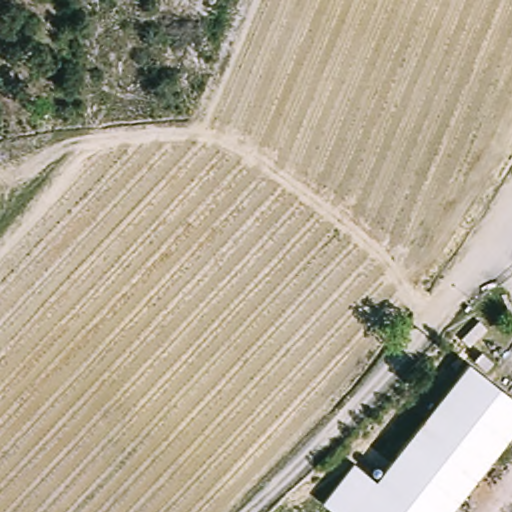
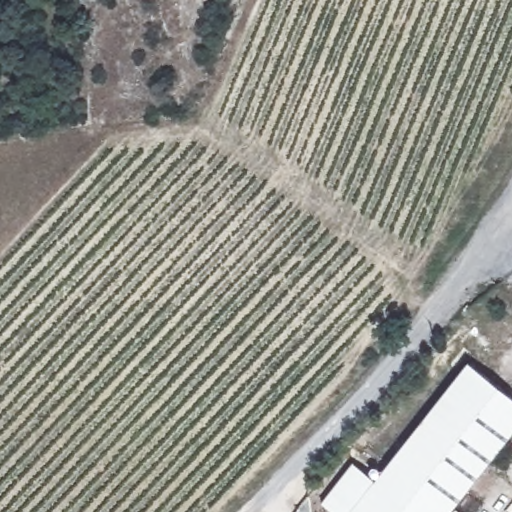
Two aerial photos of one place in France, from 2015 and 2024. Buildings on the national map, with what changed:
unchanged [(356,460),(379,477),(466,361),(512,396),(512,431),(451,512),(336,512),(323,502),(356,460)]

